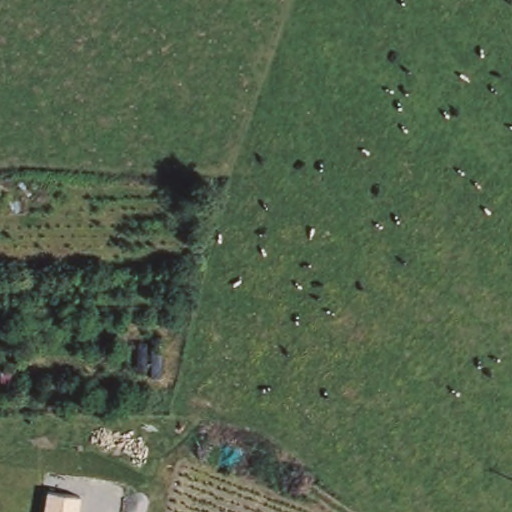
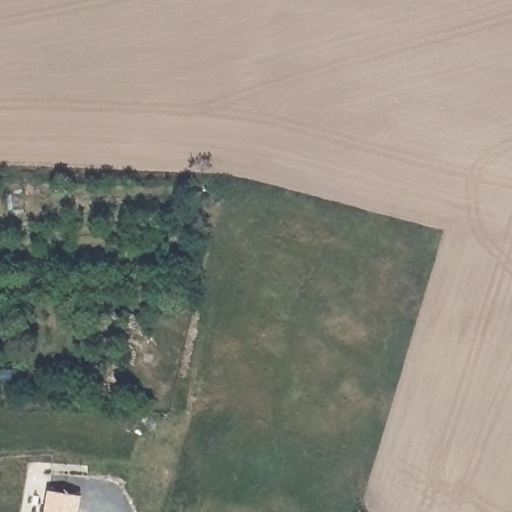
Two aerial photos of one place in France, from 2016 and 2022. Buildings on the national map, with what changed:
unchanged [(78,512),(42,512),(46,490),(81,495),(78,512)]

